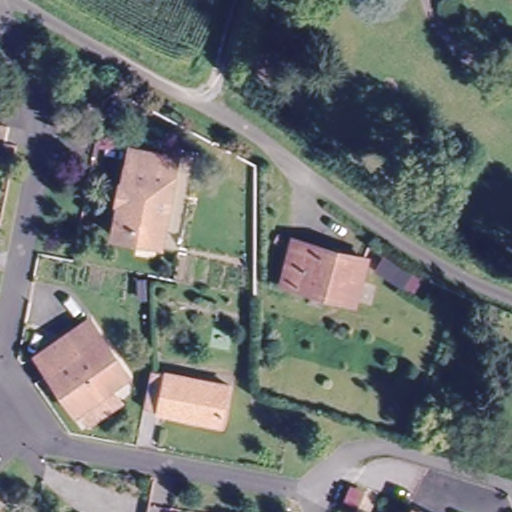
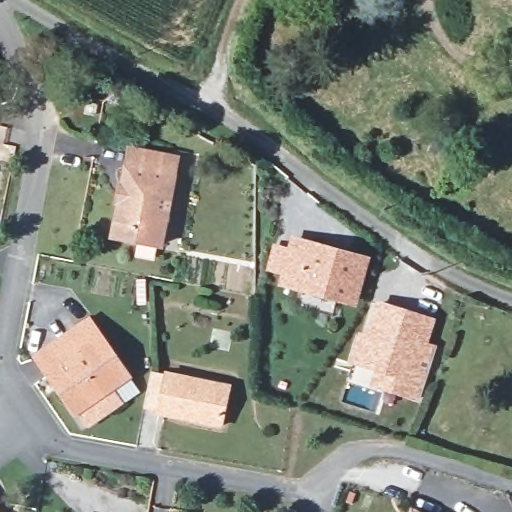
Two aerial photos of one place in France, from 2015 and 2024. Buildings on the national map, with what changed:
unchanged [(113,235),(116,224),(132,149),(181,160),(164,235),(162,246),(113,235)]
unchanged [(286,277),(297,237),(367,258),(355,300),(286,277)]
unchanged [(145,286),(154,287),(154,304),(145,303),(145,286)]
new [(358,332),(363,333),(376,300),(437,318),(429,342),(437,345),(419,402),(352,380),(356,366),(348,362),(358,332)]
unchanged [(86,417),(75,401),(38,345),(69,325),(81,341),(102,327),(106,333),(122,322),(144,355),(127,367),(101,384),(112,401),(86,417)]
unchanged [(232,388),(224,427),(147,411),(156,372),(232,388)]
unchanged [(419,512),(411,512),(412,508),(419,512)]

